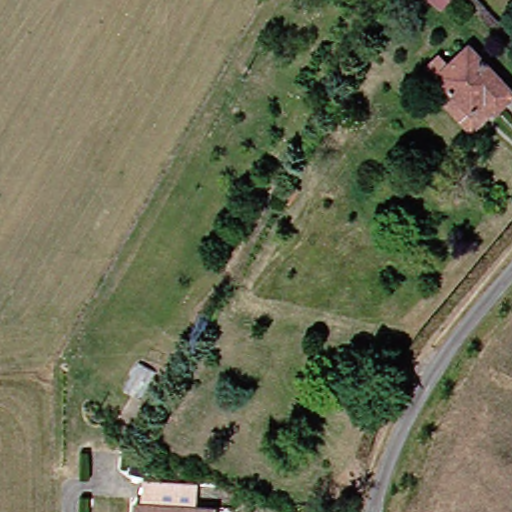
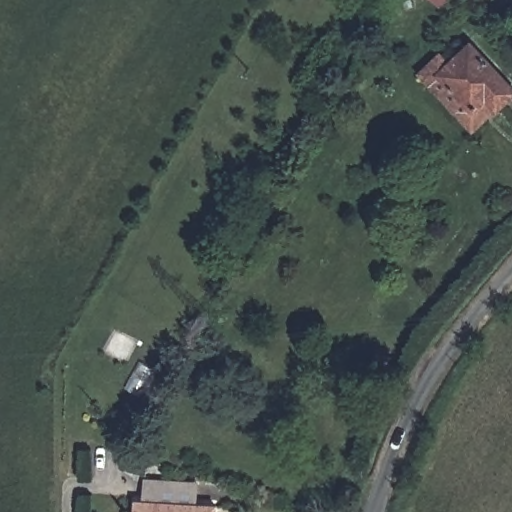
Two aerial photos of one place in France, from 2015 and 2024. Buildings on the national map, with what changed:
unchanged [(512,90),(512,93),(492,114),(481,102),(467,116),(429,76),(465,41),(512,90)]
unchanged [(136,501),(215,505),(215,512),(136,512),(136,501)]

